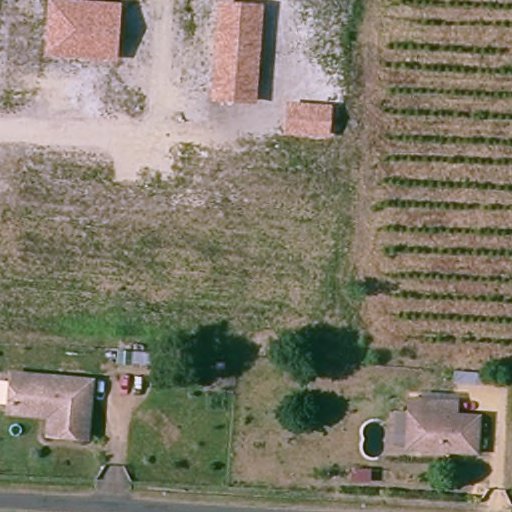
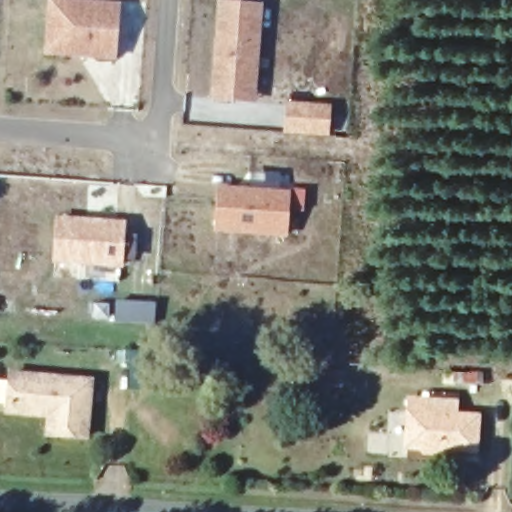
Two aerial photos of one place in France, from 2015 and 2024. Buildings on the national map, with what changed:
unchanged [(117,60),(44,54),(48,0),(82,0),(121,3),(117,60)]
unchanged [(262,4),(257,103),(211,100),(217,1),(262,4)]
unchanged [(331,104),(329,135),(284,133),(286,101),(331,104)]
new [(215,232),(217,185),(290,191),(287,237),(215,232)]
new [(52,262),(56,216),(125,221),(122,267),(52,262)]
unchanged [(42,435),(42,421),(0,419),(0,378),(92,379),(92,437),(42,435)]
unchanged [(427,402),(457,401),(457,421),(473,421),(473,454),(399,454),(399,402),(427,402)]

